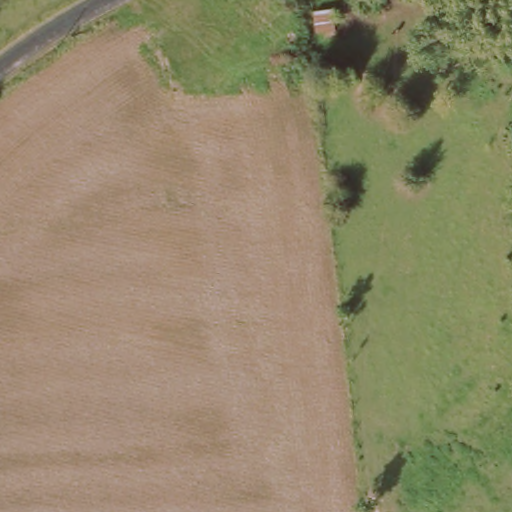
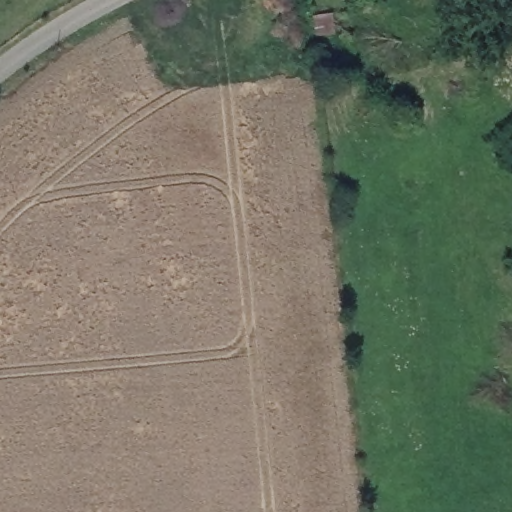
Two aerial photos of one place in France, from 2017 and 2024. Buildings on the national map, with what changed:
[]

